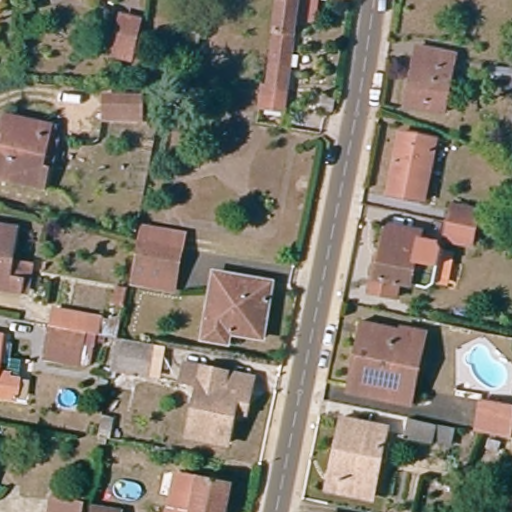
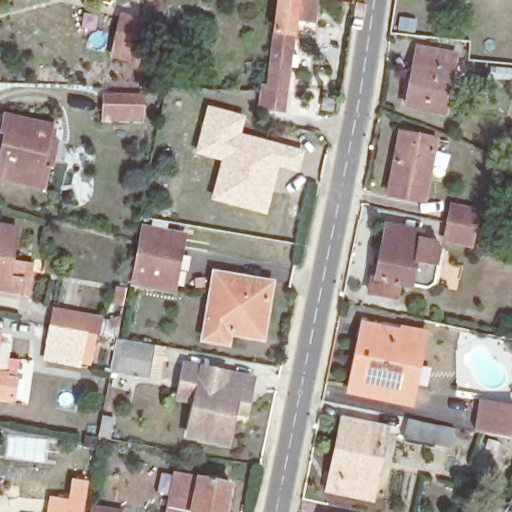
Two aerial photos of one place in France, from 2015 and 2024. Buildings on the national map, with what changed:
unchanged [(266,82),(277,0),(298,0),(286,82),(266,82)]
unchanged [(121,10),(142,14),(133,55),(112,51),(121,10)]
unchanged [(440,107),(405,102),(413,44),(449,51),(440,107)]
unchanged [(106,87),(146,94),(141,118),(102,112),(106,87)]
new [(207,105),(246,116),(241,132),(304,150),(298,172),(279,167),(266,215),(210,200),(220,161),(194,153),(207,105)]
unchanged [(0,153),(6,126),(0,125),(4,107),(49,117),(47,125),(59,129),(52,157),(48,157),(44,178),(0,168),(0,153)]
unchanged [(422,195),(387,191),(397,130),(431,135),(422,195)]
unchanged [(448,220),(451,205),(474,209),(473,224),(470,242),(446,239),(448,220)]
unchanged [(9,265),(21,267),(20,282),(0,279),(0,217),(15,220),(9,265)]
unchanged [(427,232),(426,239),(417,287),(404,286),(400,301),(375,296),(380,267),(388,266),(394,226),(427,232)]
unchanged [(426,239),(443,242),(447,249),(441,285),(434,290),(417,287),(426,239)]
unchanged [(139,243),(178,249),(172,288),(132,281),(139,243)]
unchanged [(254,330),(232,326),(229,336),(205,331),(216,271),(220,270),(272,278),(269,295),(261,296),(254,330)]
unchanged [(101,313),(95,357),(46,350),(49,321),(52,304),(87,311),(101,313)]
unchanged [(386,397),(350,390),(353,367),(360,332),(362,321),(372,323),(400,329),(402,323),(424,328),(417,363),(409,402),(386,397)]
unchanged [(149,383),(116,378),(123,340),(155,346),(149,383)]
unchanged [(8,371),(19,373),(14,398),(0,396),(0,342),(11,343),(8,371)]
unchanged [(198,382),(180,380),(183,361),(252,375),(245,413),(230,411),(225,441),(188,433),(198,382)]
unchanged [(512,404),(512,435),(478,427),(485,398),(512,404)]
unchanged [(346,416),(351,417),(351,425),(386,433),(375,488),(332,479),(346,416)]
unchanged [(436,428),(433,444),(405,437),(409,422),(436,428)]
unchanged [(227,512),(173,512),(181,476),(197,478),(232,482),(227,512)]
unchanged [(49,506),(51,493),(69,496),(83,498),(80,512),(48,512),(49,506)]
unchanged [(492,499),(512,504),(512,512),(490,512),(492,499)]
unchanged [(118,512),(91,512),(94,500),(119,504),(118,512)]

